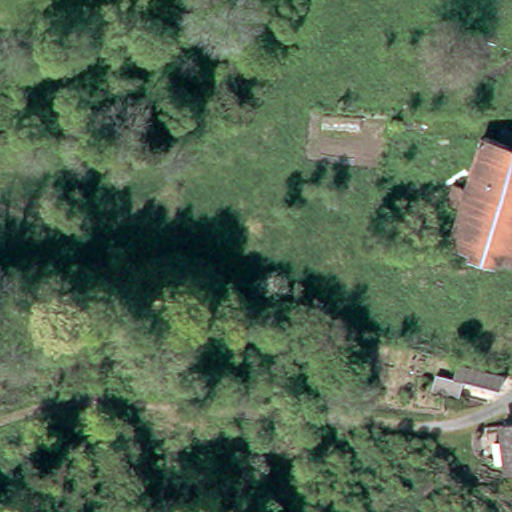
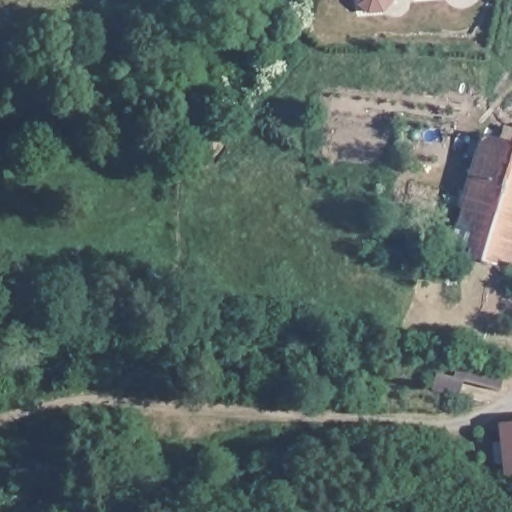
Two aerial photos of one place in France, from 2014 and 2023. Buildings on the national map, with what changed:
new [(368,13),(356,3),(356,0),(392,0),(393,1),(384,12),(368,13)]
unchanged [(512,261),(478,249),(456,241),(449,238),(459,207),(467,187),(484,133),(501,138),(506,125),(512,127),(512,265),(511,265),(512,261)]
unchanged [(499,382),(463,373),(459,389),(433,382),(437,366),(453,370),(457,355),(506,367),(503,370),(499,382)]
unchanged [(499,424),(512,422),(512,466),(506,465),(505,461),(493,461),(490,444),(502,443),(499,424)]

